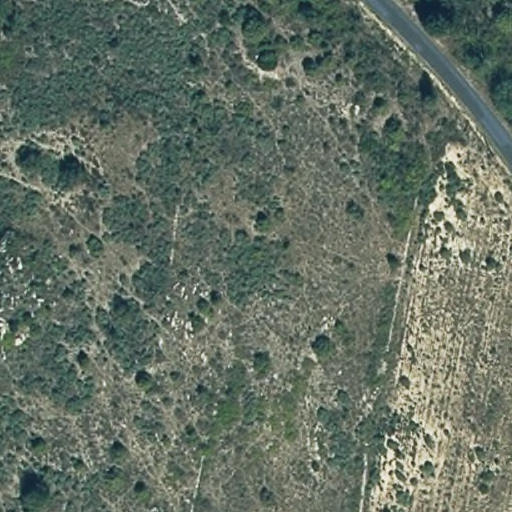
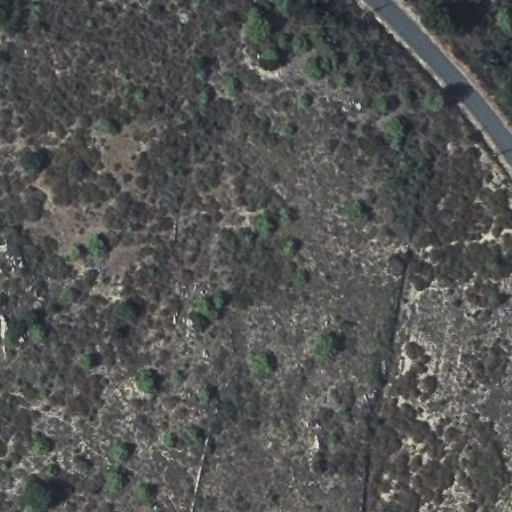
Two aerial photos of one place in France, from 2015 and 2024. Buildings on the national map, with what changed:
[]

